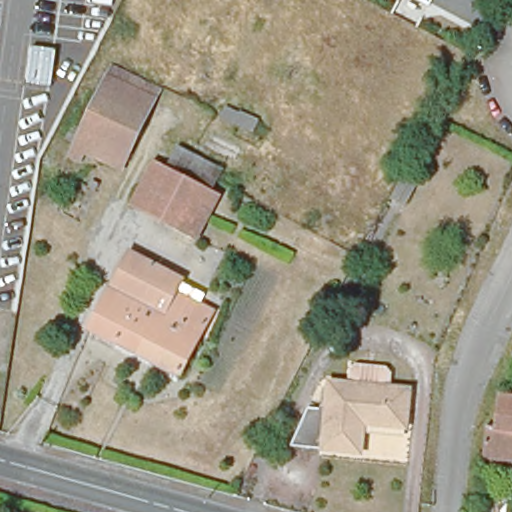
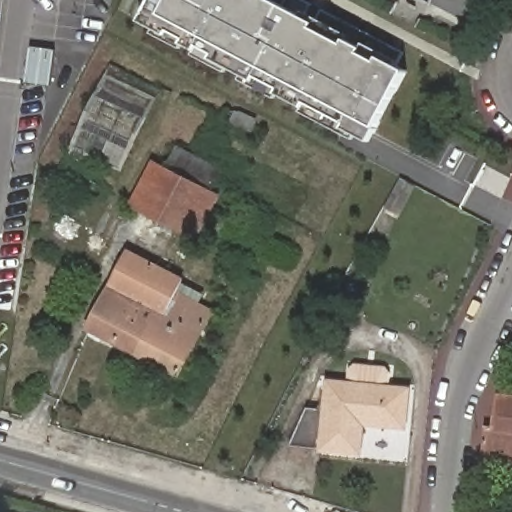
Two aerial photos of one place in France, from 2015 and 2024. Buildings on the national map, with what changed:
new [(285,0),(305,0),(312,4),(307,12),(317,18),(322,10),(405,53),(400,61),(398,66),(407,71),(377,129),(370,142),(355,134),(353,139),(301,111),(304,107),(277,93),(275,97),(241,80),(244,75),(229,67),(226,72),(194,55),(195,50),(185,45),(182,49),(152,32),(154,30),(140,22),(151,0),(273,0),(282,5),(285,0)]
unchanged [(110,75),(155,95),(126,165),(91,151),(87,160),(76,155),(110,75)]
unchanged [(149,164),(214,196),(191,240),(128,206),(149,164)]
unchanged [(127,255),(184,284),(177,297),(212,315),(179,380),(88,332),(127,255)]
unchanged [(220,266),(229,271),(218,293),(209,289),(220,266)]
unchanged [(347,383),(350,363),(387,366),(386,386),(413,388),(411,425),(370,422),(367,451),(291,446),(307,413),(324,415),(326,381),(347,383)]
unchanged [(512,463),(486,460),(489,430),(496,431),(500,403),(512,405),(512,463)]

